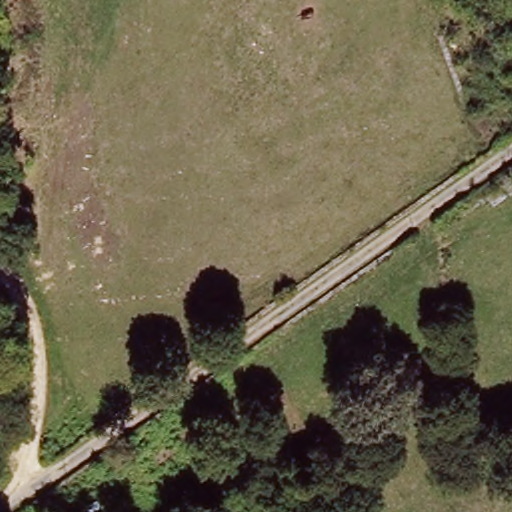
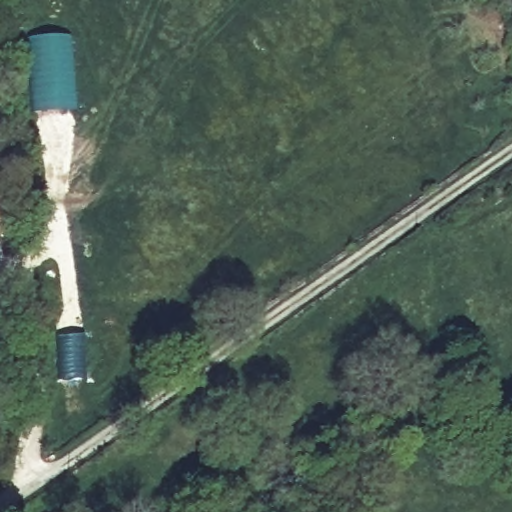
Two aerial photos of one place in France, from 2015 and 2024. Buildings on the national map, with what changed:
new [(27,39),(68,37),(73,110),(33,114),(27,39)]

